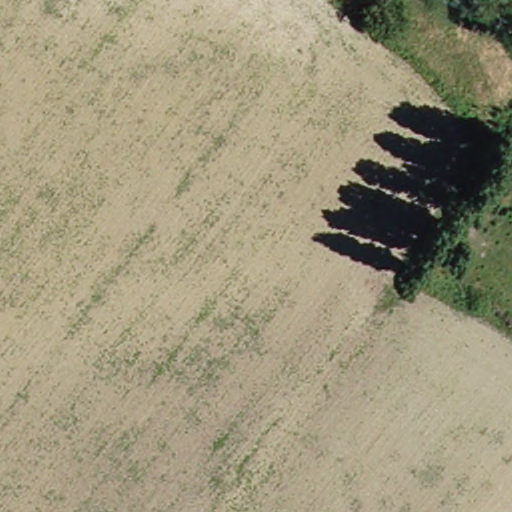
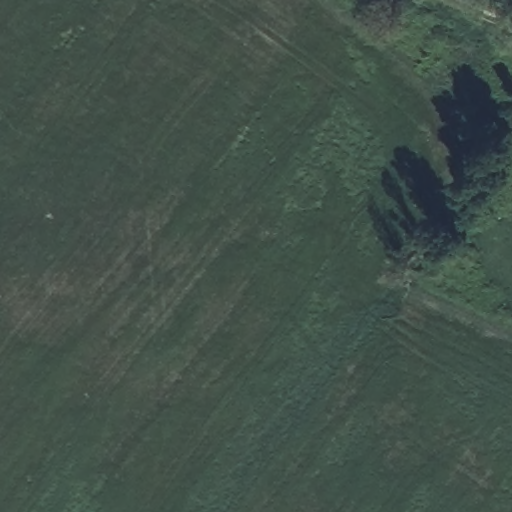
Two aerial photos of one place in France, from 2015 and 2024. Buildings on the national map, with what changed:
[]

